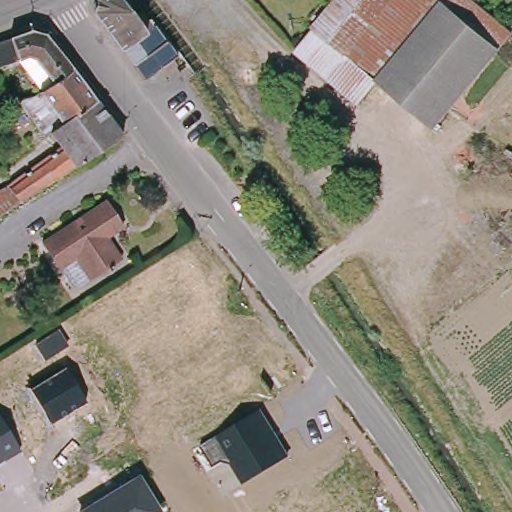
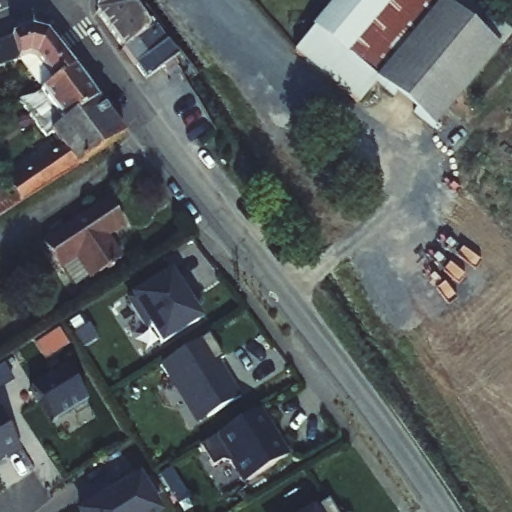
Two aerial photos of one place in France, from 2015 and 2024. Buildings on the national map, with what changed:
unchanged [(146,36),(157,30),(177,58),(144,81),(95,14),(98,0),(127,0),(123,4),(146,36)]
unchanged [(357,104),(294,51),(337,0),(468,0),(510,36),(434,128),(377,81),(357,104)]
unchanged [(20,66),(0,73),(0,49),(35,36),(48,41),(75,75),(42,98),(20,66)]
unchanged [(39,200),(23,210),(11,192),(67,155),(57,141),(51,144),(24,106),(42,98),(75,75),(125,143),(39,200)]
unchanged [(0,114),(0,95),(6,112),(0,114)]
unchanged [(11,192),(23,210),(0,226),(0,192),(4,197),(11,192)]
unchanged [(122,229),(105,240),(119,260),(110,266),(113,271),(107,274),(104,270),(87,282),(85,280),(72,288),(60,270),(59,270),(42,244),(104,202),(122,229)]
new [(172,273),(182,290),(179,293),(186,304),(187,303),(199,322),(160,345),(149,327),(145,329),(128,301),(172,273)]
new [(64,345),(42,359),(33,344),(55,331),(64,345)]
new [(207,336),(222,360),(215,365),(227,386),(230,385),(239,399),(200,422),(190,405),(187,406),(172,382),(170,383),(160,366),(207,336)]
unchanged [(86,402),(51,424),(30,389),(65,367),(86,402)]
unchanged [(217,436),(260,410),(289,457),(242,485),(231,465),(222,461),(212,467),(200,446),(217,436)]
unchanged [(0,463),(0,418),(20,451),(0,463)]
unchanged [(162,512),(75,512),(139,473),(162,512)]
new [(329,506),(333,512),(319,512),(329,506)]

